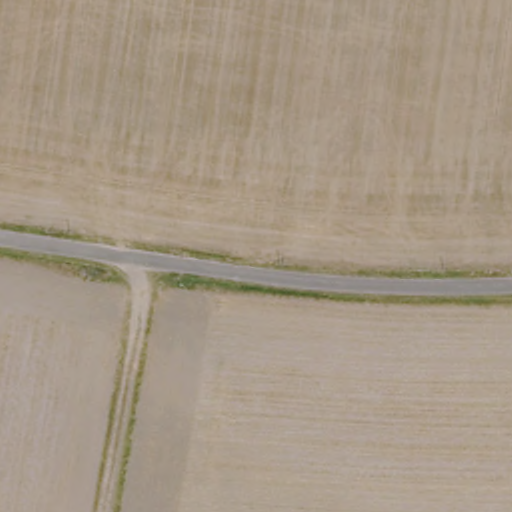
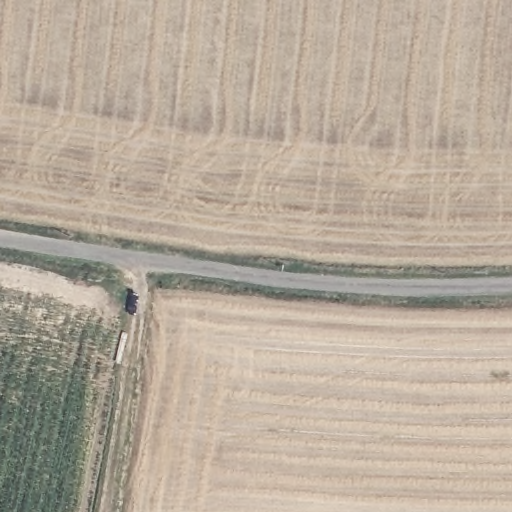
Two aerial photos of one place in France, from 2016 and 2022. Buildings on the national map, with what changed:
[]

